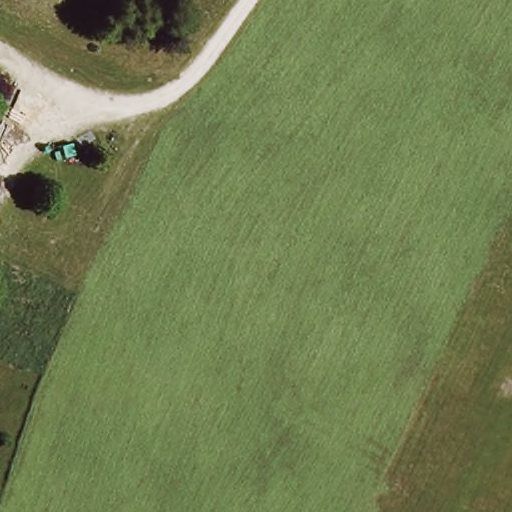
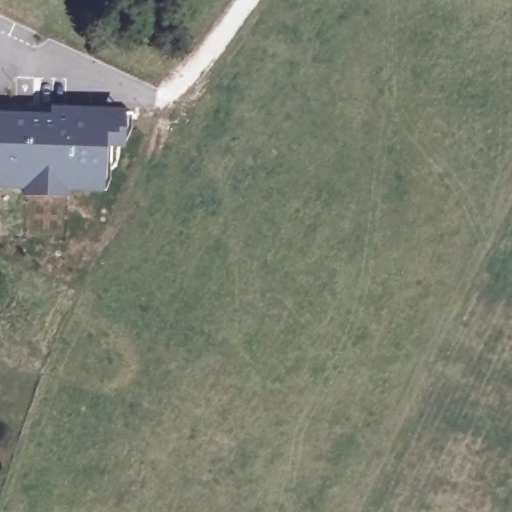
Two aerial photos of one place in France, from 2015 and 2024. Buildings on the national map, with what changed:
new [(70,197),(23,196),(23,190),(0,189),(0,113),(50,115),(50,108),(126,110),(125,148),(104,148),(103,193),(70,191),(70,197)]

